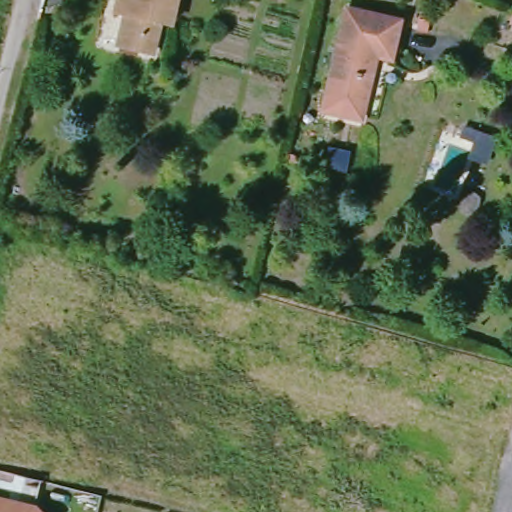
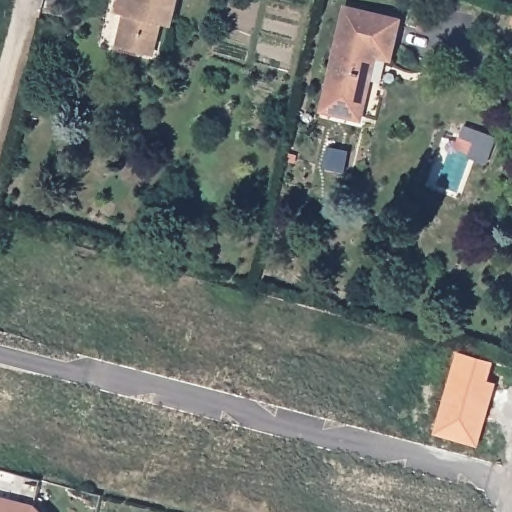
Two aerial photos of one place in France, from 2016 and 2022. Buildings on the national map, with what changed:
unchanged [(139,53),(117,45),(128,14),(116,10),(119,1),(123,2),(123,0),(181,0),(171,29),(161,25),(155,43),(151,57),(139,53)]
unchanged [(397,19),(389,57),(371,53),(361,99),(323,90),(341,7),(397,19)]
new [(494,385),(486,416),(484,415),(475,446),(436,435),(458,356),(492,365),(487,383),(494,385)]
unchanged [(43,512),(0,512),(0,496),(35,504),(43,512)]

